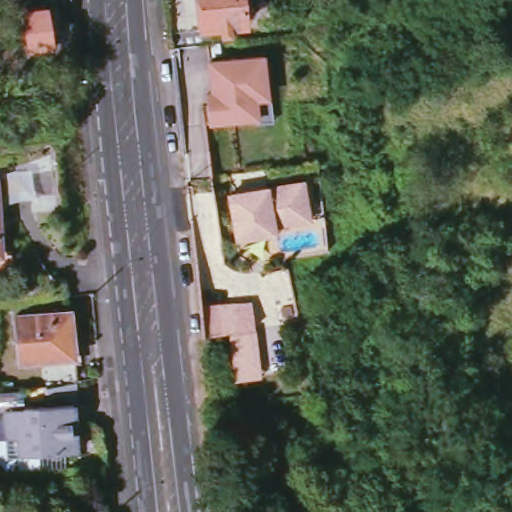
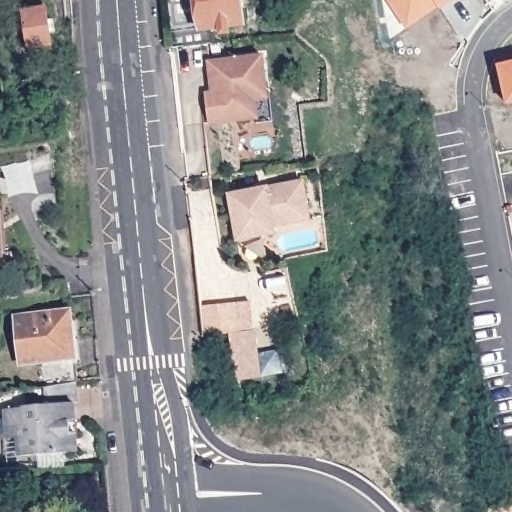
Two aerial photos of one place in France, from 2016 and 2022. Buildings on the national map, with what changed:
new [(56,2),(56,0),(77,0),(56,2)]
unchanged [(254,30),(172,38),(168,0),(250,0),(254,30)]
new [(440,8),(435,2),(427,9),(425,16),(407,26),(389,0),(453,0),(440,8)]
unchanged [(27,8),(50,5),(57,45),(32,50),(27,8)]
unchanged [(265,58),(269,92),(272,92),(275,122),(260,124),(259,119),(210,122),(207,94),(211,93),(207,63),(265,58)]
new [(498,63),(512,60),(512,99),(506,100),(498,63)]
unchanged [(310,217),(274,223),(275,230),(236,236),(229,191),(303,179),(310,217)]
unchanged [(0,230),(2,252),(0,253),(0,230)]
unchanged [(249,297),(252,331),(229,333),(200,336),(198,303),(249,297)]
unchanged [(72,375),(47,380),(45,357),(24,360),(17,312),(72,306),(80,374),(72,375)]
unchanged [(252,331),(262,379),(236,380),(229,333),(252,331)]
unchanged [(75,401),(72,402),(77,448),(20,454),(19,436),(7,437),(5,409),(45,405),(42,380),(47,380),(72,375),(75,401)]
new [(512,458),(512,474),(506,460),(512,458)]

